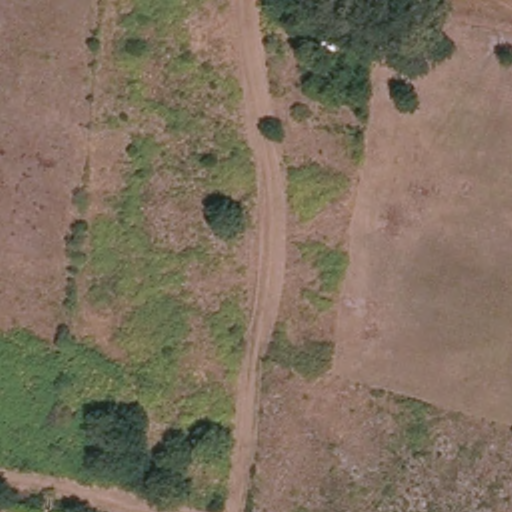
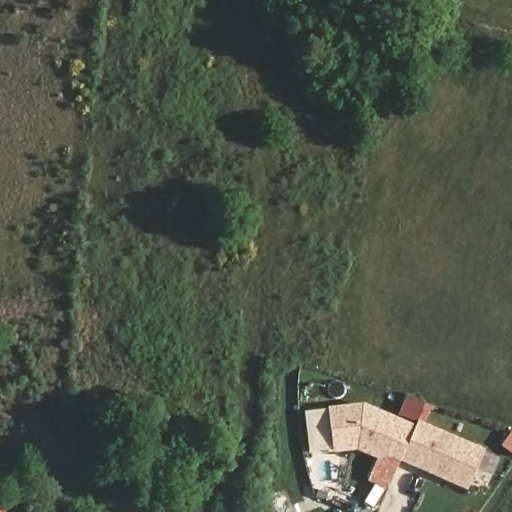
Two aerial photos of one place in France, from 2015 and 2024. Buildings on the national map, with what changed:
new [(470,487),(390,453),(387,461),(360,450),(337,452),(332,406),(367,402),(420,425),(423,420),(488,447),(470,487)]

